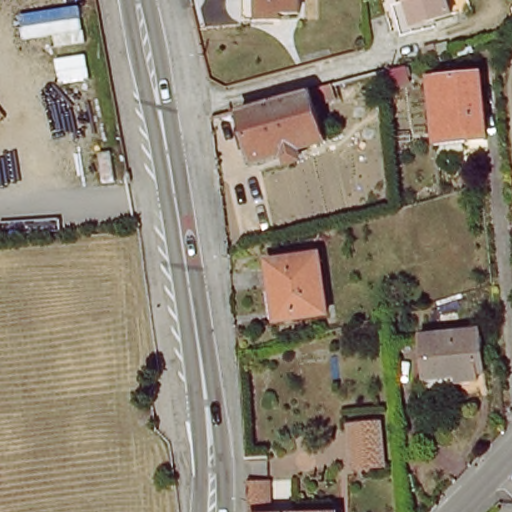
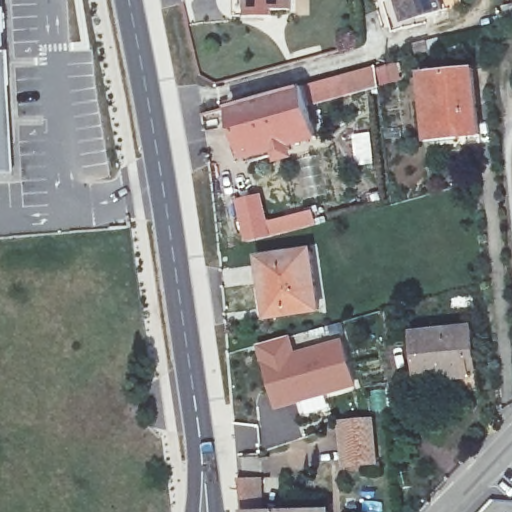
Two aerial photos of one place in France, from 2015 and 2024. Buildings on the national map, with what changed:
new [(3,0),(6,54),(9,57),(16,177),(0,177),(0,0),(3,0)]
unchanged [(274,12),(274,18),(235,19),(234,0),(293,0),(294,11),(274,12)]
unchanged [(400,23),(394,0),(435,0),(438,14),(400,23)]
unchanged [(474,69),(480,136),(430,141),(423,73),(474,69)]
unchanged [(375,71),(379,85),(324,101),(303,109),(311,144),(285,152),(287,157),(245,169),(228,111),(320,86),(375,71)]
new [(263,222),(312,211),(316,227),(243,246),(231,199),(257,194),(263,222)]
unchanged [(311,253),(316,312),(266,318),(261,258),(311,253)]
unchanged [(473,328),(478,374),(469,375),(470,382),(450,384),(449,377),(418,380),(414,335),(473,328)]
new [(293,337),(298,355),(344,339),(358,387),(279,412),(260,345),(293,337)]
unchanged [(374,422),(378,463),(348,467),(344,425),(374,422)]
unchanged [(244,485),(267,485),(267,490),(269,512),(246,512),(244,490),(244,485)]

